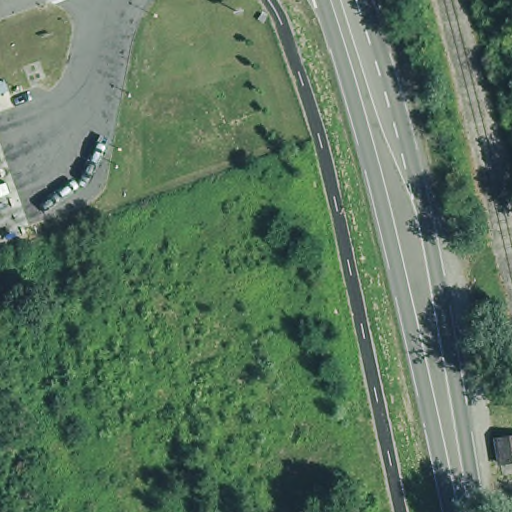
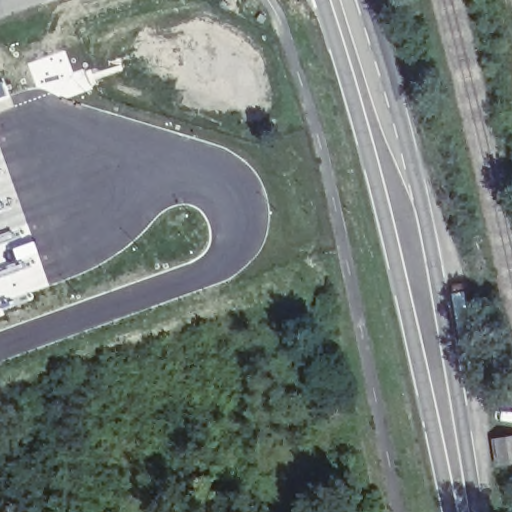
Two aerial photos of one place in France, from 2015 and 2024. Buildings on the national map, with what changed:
unchanged [(512,465),(504,466),(502,423),(512,423),(512,465)]

